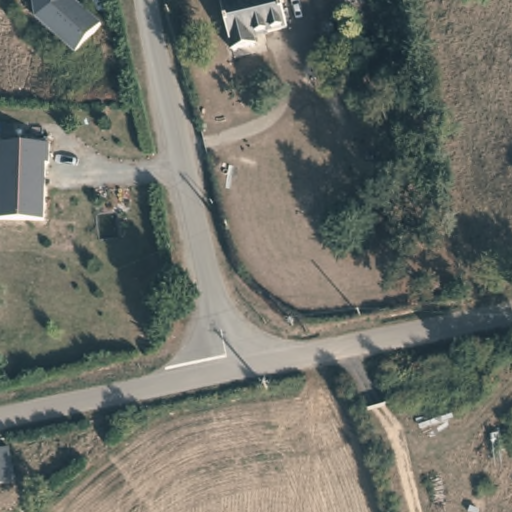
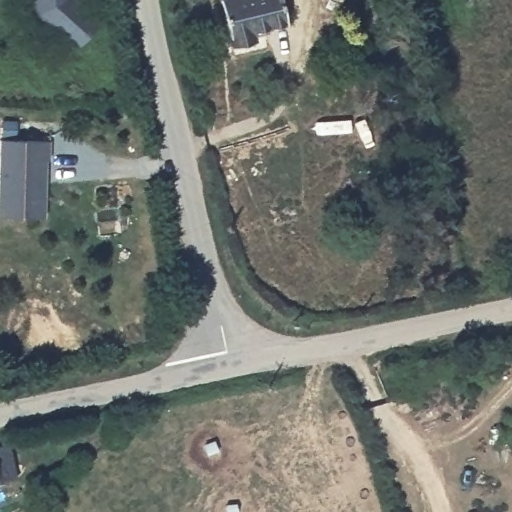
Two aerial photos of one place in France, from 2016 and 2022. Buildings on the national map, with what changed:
unchanged [(74,50),(33,15),(30,0),(74,0),(99,21),(74,50)]
unchanged [(284,0),(288,20),(252,29),(255,40),(235,44),(225,0),(284,0)]
unchanged [(49,158),(46,158),(45,215),(0,214),(0,138),(49,139),(49,158)]
unchanged [(0,481),(0,446),(9,444),(16,478),(0,481)]

